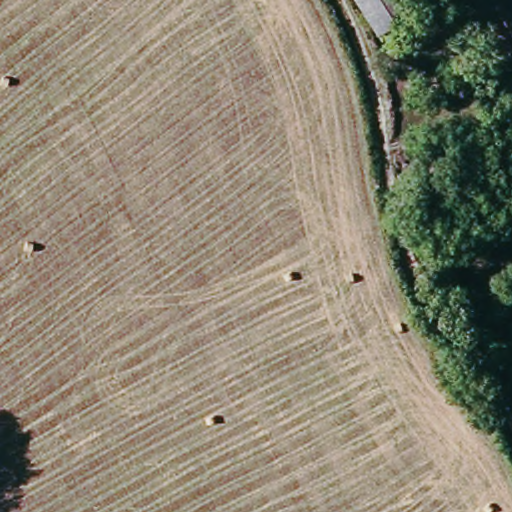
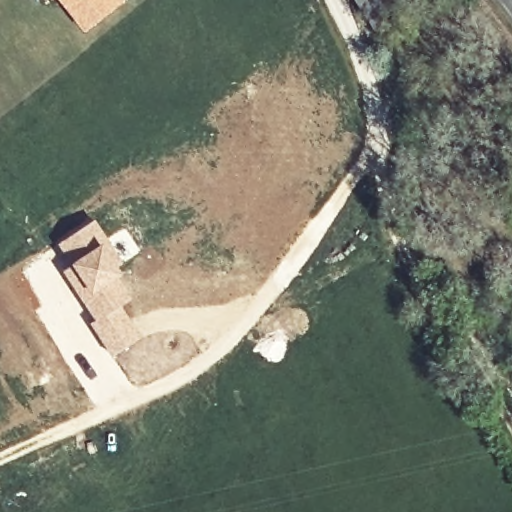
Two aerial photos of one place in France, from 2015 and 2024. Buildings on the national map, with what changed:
new [(57,0),(122,0),(82,32),(57,0)]
unchanged [(394,0),(397,4),(366,26),(348,0),(394,0)]
new [(94,217),(124,261),(116,267),(120,273),(117,275),(130,298),(120,306),(139,337),(109,355),(87,322),(92,320),(60,270),(66,266),(55,243),(94,217)]

